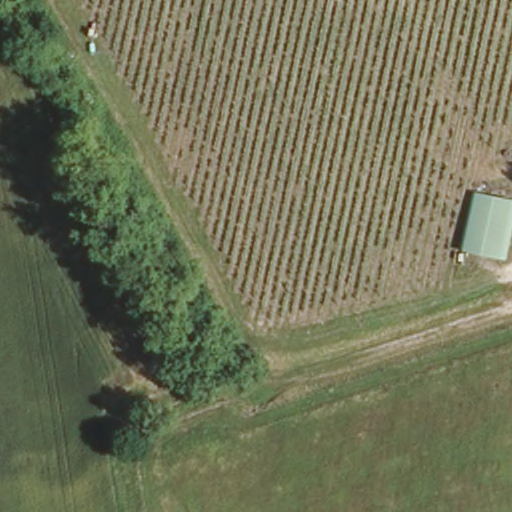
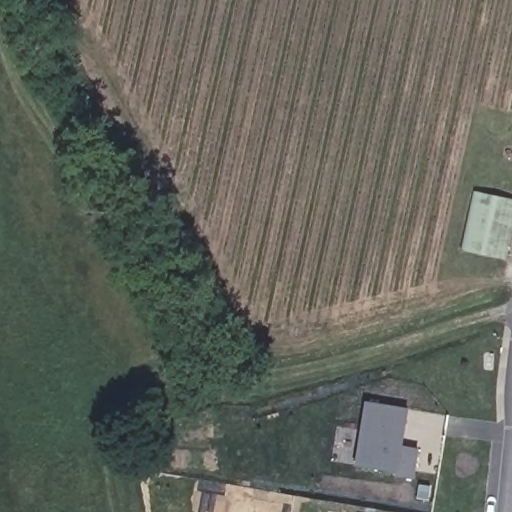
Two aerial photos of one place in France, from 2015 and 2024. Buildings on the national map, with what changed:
unchanged [(512,199),(512,228),(505,258),(463,247),(475,191),(512,199)]
new [(419,449),(414,480),(397,477),(398,473),(356,466),(366,401),(408,408),(402,446),(419,449)]

